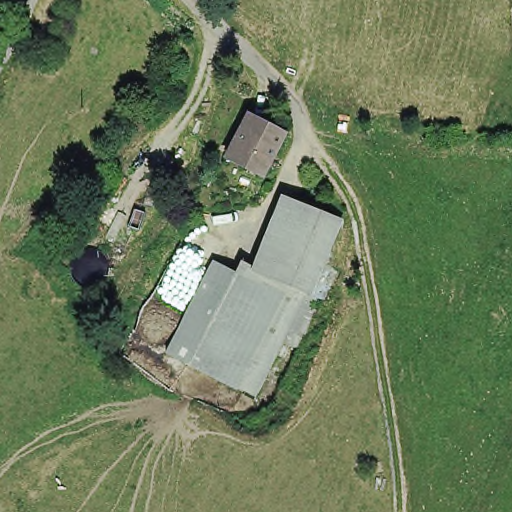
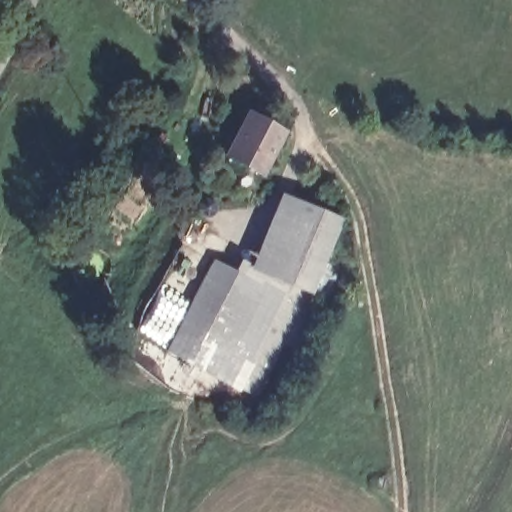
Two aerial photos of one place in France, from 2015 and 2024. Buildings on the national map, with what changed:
unchanged [(264,174),(227,154),(251,110),(288,129),(264,174)]
unchanged [(211,257),(236,270),(243,249),(254,254),(281,191),(345,216),(320,292),(309,287),(259,392),(166,348),(200,281),(211,257)]

